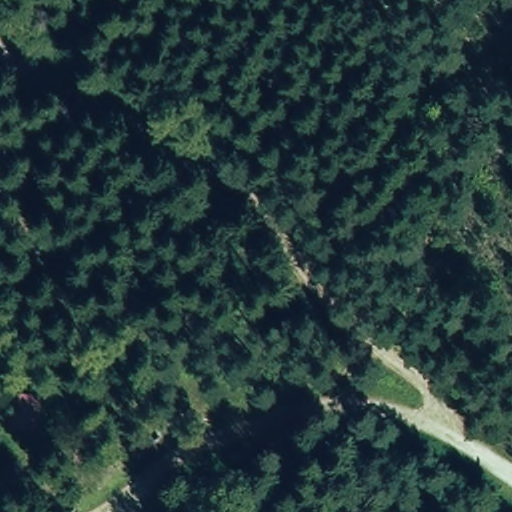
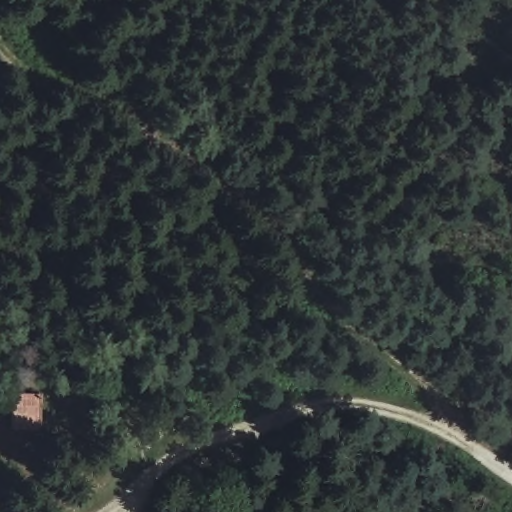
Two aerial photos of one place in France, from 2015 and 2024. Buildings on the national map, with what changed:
unchanged [(9,388),(41,387),(42,430),(11,428),(9,388)]

